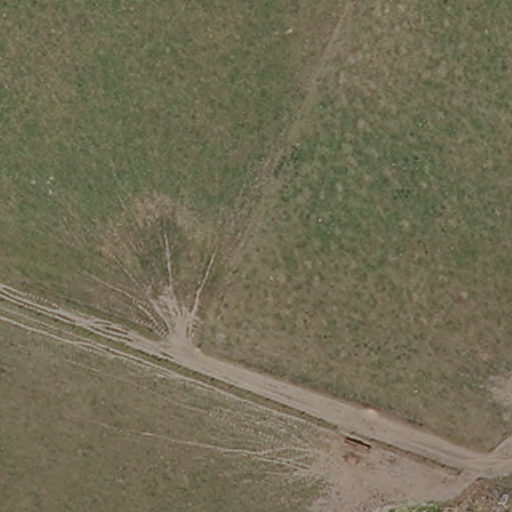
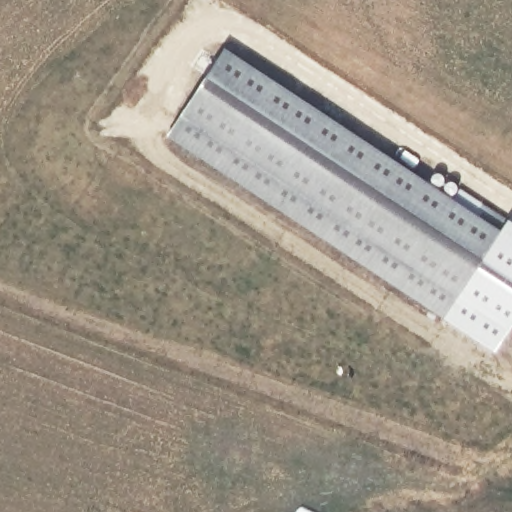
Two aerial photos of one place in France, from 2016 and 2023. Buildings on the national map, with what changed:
new [(445,319),(167,137),(225,48),(476,214),(484,203),(508,220),(445,319)]

